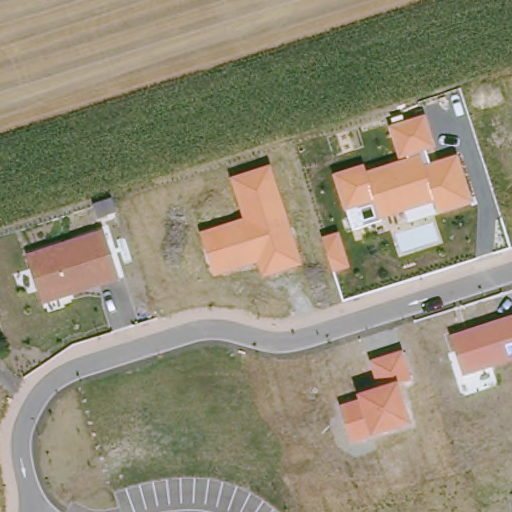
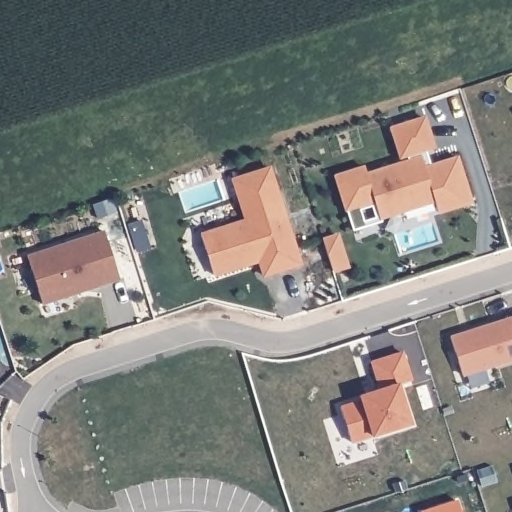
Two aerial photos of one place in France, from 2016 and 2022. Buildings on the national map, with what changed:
unchanged [(364,165),(366,172),(399,161),(388,126),(427,113),(437,147),(426,150),(429,163),(458,154),(472,202),(438,212),(409,221),(406,212),(381,220),(353,230),(346,210),(344,211),(332,175),(364,165)]
unchanged [(243,219),(230,177),(271,165),(304,265),(262,277),(258,263),(214,277),(201,232),(243,219)]
unchanged [(103,229),(119,278),(43,302),(26,255),(103,229)]
unchanged [(512,316),(512,359),(463,376),(449,335),(512,316)]
unchanged [(404,350),(413,378),(399,382),(412,426),(374,436),(352,441),(340,405),(358,394),(379,388),(371,361),(404,350)]
new [(457,500),(461,512),(423,512),(423,511),(457,500)]

